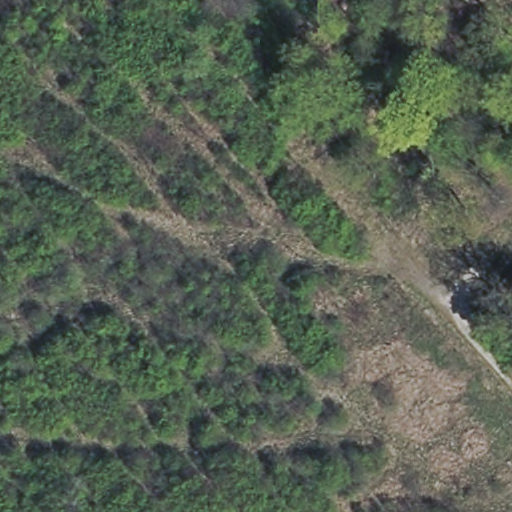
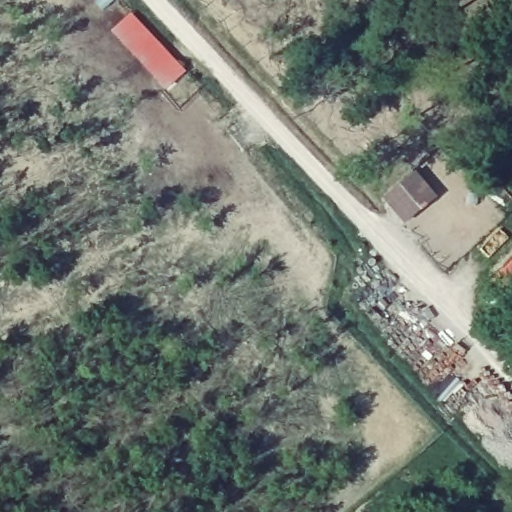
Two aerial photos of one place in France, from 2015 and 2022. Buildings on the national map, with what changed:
new [(187,72),(166,90),(110,32),(130,14),(187,72)]
new [(438,198),(405,226),(382,200),(415,172),(438,198)]
unchanged [(503,285),(512,275),(512,293),(503,285)]

